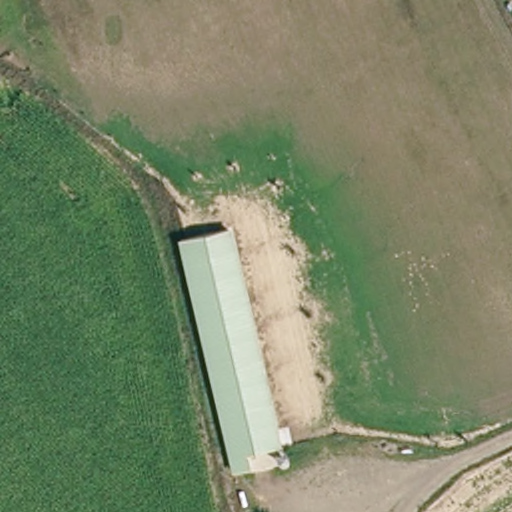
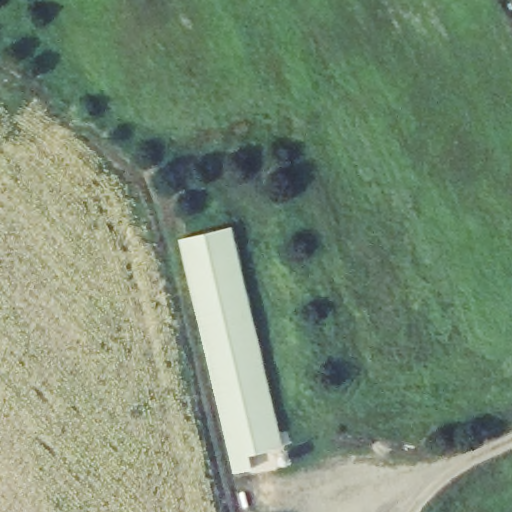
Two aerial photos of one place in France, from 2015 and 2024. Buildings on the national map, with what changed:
unchanged [(282,453),(250,461),(254,476),(241,479),(180,244),(226,233),(282,453)]

